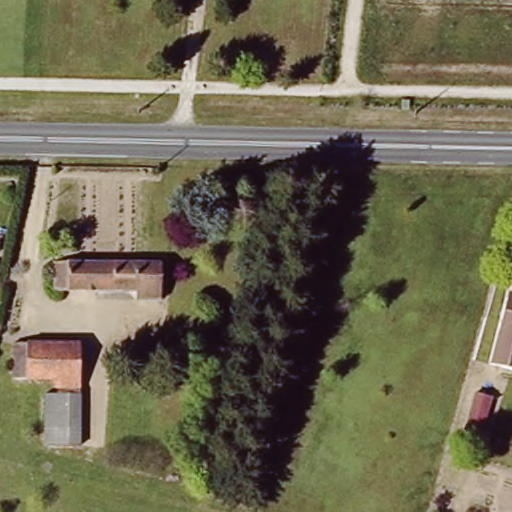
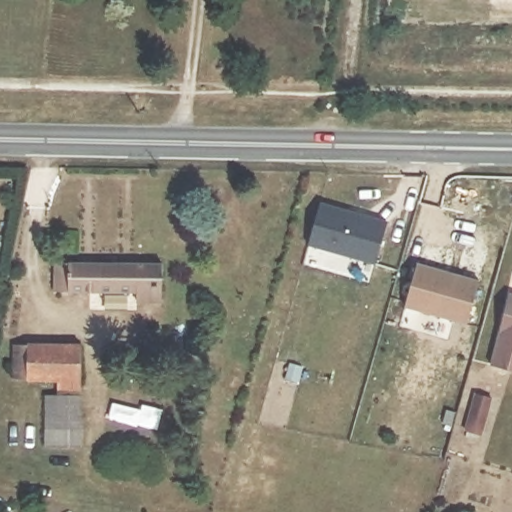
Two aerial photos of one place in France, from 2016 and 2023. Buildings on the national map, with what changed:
new [(374,264),(308,246),(319,202),(386,221),(374,264)]
unchanged [(54,259),(163,260),(162,297),(137,297),(137,289),(54,288),(54,259)]
new [(468,324),(404,307),(416,262),(479,279),(468,324)]
unchanged [(509,294),(512,295),(512,371),(491,366),(509,294)]
unchanged [(81,341),(81,385),(49,385),(49,376),(13,376),(13,340),(81,341)]
unchanged [(49,391),(49,385),(81,385),(81,443),(45,443),(45,391),(49,391)]
unchanged [(479,400),(497,405),(487,440),(469,435),(479,400)]

